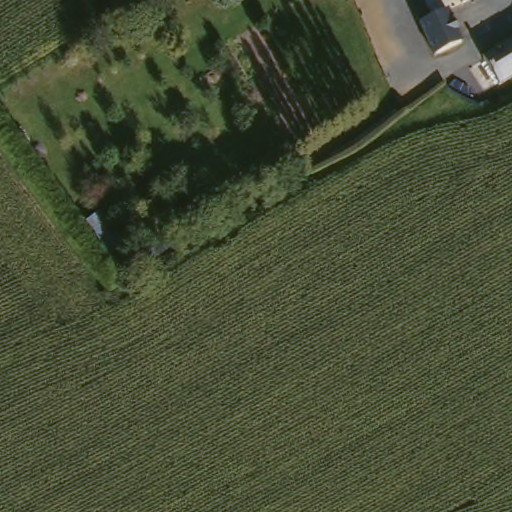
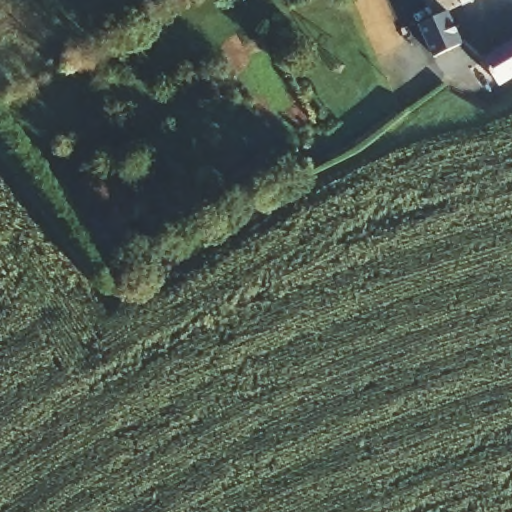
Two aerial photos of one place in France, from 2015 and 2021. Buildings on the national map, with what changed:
unchanged [(469,4),(467,0),(477,0),(469,4)]
unchanged [(454,13),(472,46),(444,62),(426,29),(454,13)]
unchanged [(497,91),(480,66),(512,45),(512,82),(497,91)]

